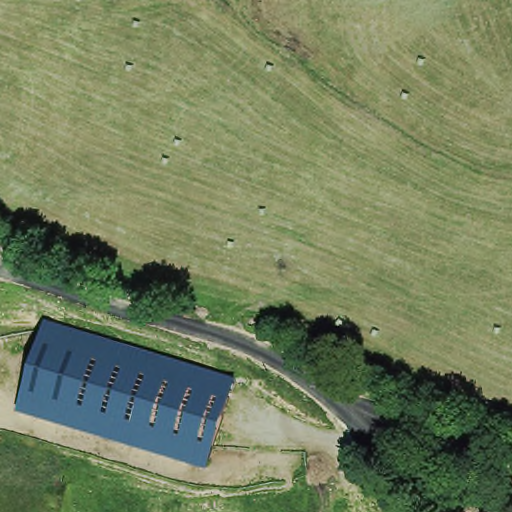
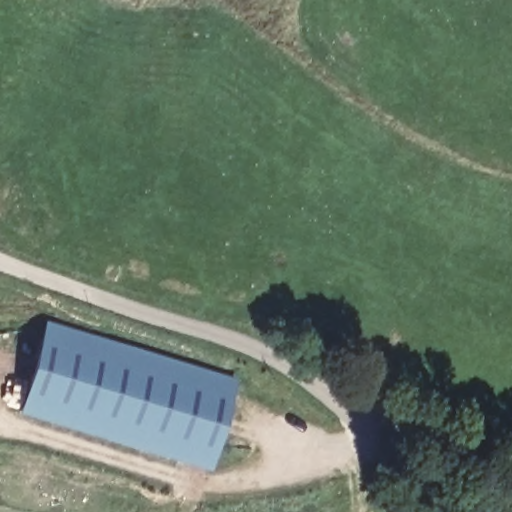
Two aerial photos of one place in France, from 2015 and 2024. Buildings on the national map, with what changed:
unchanged [(234,378),(206,468),(15,412),(45,320),(234,378)]

